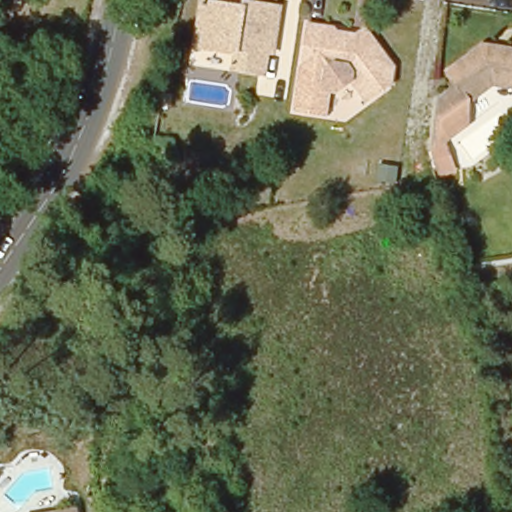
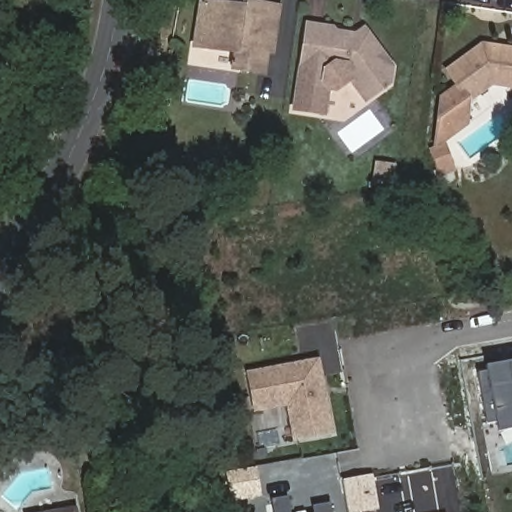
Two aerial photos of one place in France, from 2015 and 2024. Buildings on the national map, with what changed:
unchanged [(264,50),(258,49),(256,71),(225,66),(228,45),(187,39),(192,0),(196,0),(220,3),(220,0),(235,0),(270,5),(264,50)]
unchanged [(337,31),(356,33),(365,24),(397,66),(392,86),(367,105),(350,84),(337,94),(332,94),(327,118),(293,113),(307,20),(335,25),(337,31)]
unchanged [(437,95),(452,85),(442,70),(479,41),(512,47),(512,88),(490,84),(465,99),(463,125),(443,140),(453,169),(437,178),(429,151),(437,95)]
unchanged [(394,166),(393,182),(374,180),(375,163),(394,166)]
new [(284,400),(251,405),(245,367),(315,355),(318,373),(321,388),(327,428),(290,435),(284,400)]
new [(488,371),(487,367),(512,363),(512,430),(497,432),(497,424),(487,424),(478,374),(488,371)]
new [(366,475),(371,505),(343,510),(338,480),(366,475)]
new [(287,493),(289,512),(272,512),(270,496),(287,493)]
new [(312,512),(311,503),(329,500),(331,512),(312,512)]
unchanged [(70,512),(59,512),(70,510),(70,512)]

